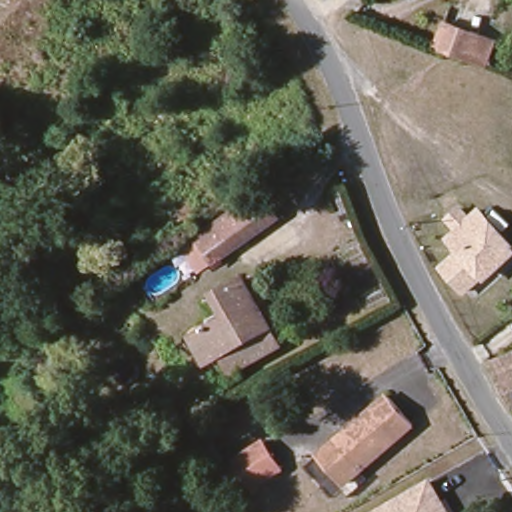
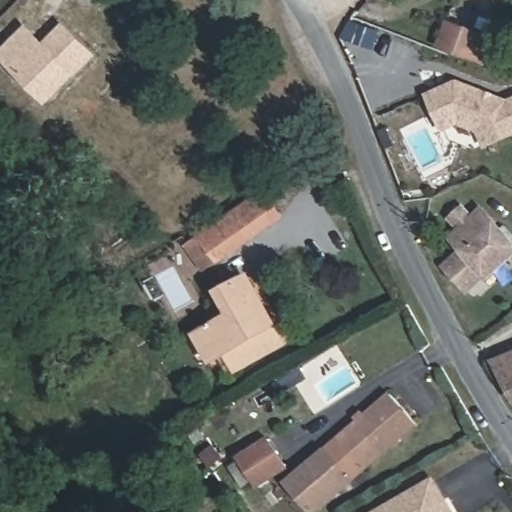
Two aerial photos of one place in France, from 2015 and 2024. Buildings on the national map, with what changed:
new [(49,105),(0,57),(0,53),(28,25),(45,41),(64,22),(98,55),(77,76),(49,105)]
unchanged [(445,48),(452,29),(490,45),(484,63),(445,48)]
new [(484,149),(477,131),(456,124),(442,132),(425,92),(457,79),(509,99),(512,98),(512,137),(484,149)]
unchanged [(201,239),(259,199),(275,221),(277,223),(219,263),(215,258),(201,239)]
unchanged [(470,295),(445,272),(461,253),(452,244),(461,233),(449,221),(459,210),(473,221),(480,213),(512,243),(512,249),(470,295)]
unchanged [(236,371),(226,350),(210,358),(200,339),(243,317),(232,296),(252,286),(283,348),(236,371)]
unchanged [(494,359),(512,353),(512,374),(502,378),(494,359)]
unchanged [(512,374),(512,399),(511,399),(502,378),(512,374)]
unchanged [(365,468),(339,440),(389,395),(416,423),(365,468)]
new [(319,512),(311,512),(287,483),(339,440),(365,468),(319,512)]
unchanged [(256,491),(237,463),(268,443),(287,471),(256,491)]
unchanged [(437,488),(450,512),(391,512),(437,488)]

